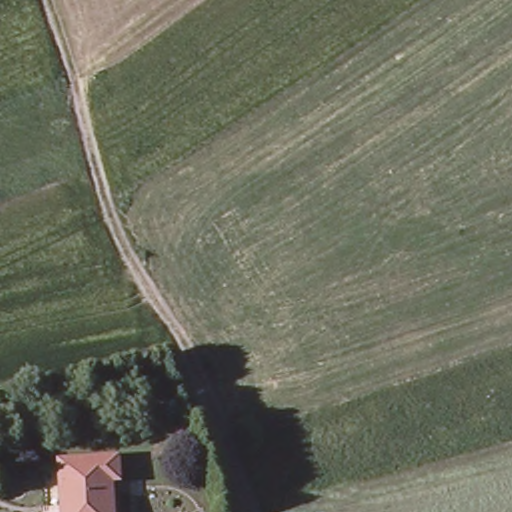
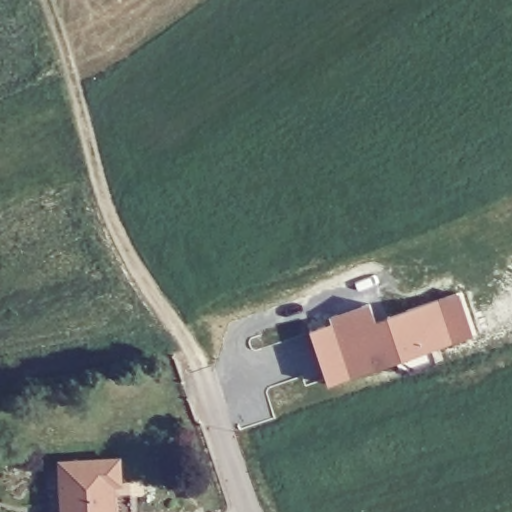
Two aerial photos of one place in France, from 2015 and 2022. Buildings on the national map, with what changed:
new [(331,327),(327,319),(368,307),(373,323),(457,296),(472,341),(329,391),(310,335),(331,327)]
unchanged [(121,482),(113,482),(115,512),(64,512),(62,462),(120,459),(121,482)]

